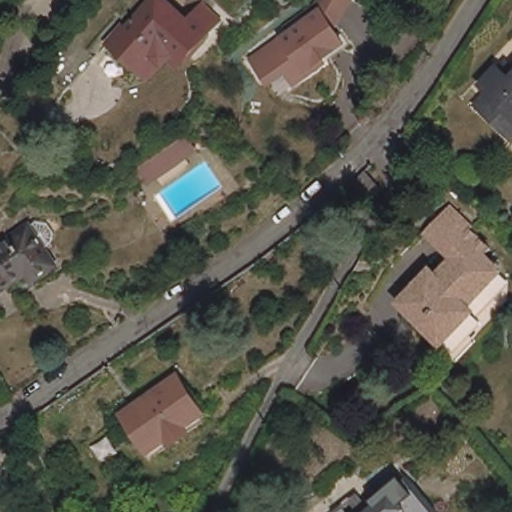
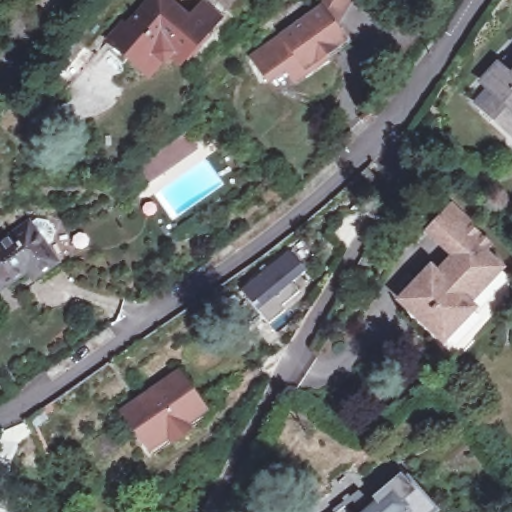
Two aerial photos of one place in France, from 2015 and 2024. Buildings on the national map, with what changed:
unchanged [(145,66),(127,49),(122,56),(108,44),(114,38),(112,36),(127,19),(132,22),(151,0),(177,0),(192,14),(204,0),(215,0),(226,9),(209,28),(184,57),(175,50),(167,59),(154,74),(145,66)]
unchanged [(295,88),(285,74),(267,86),(247,58),(278,36),(275,31),(315,4),(317,0),(351,0),(336,30),(347,44),(325,59),(327,64),(295,88)]
unchanged [(378,52),(403,17),(427,30),(431,32),(405,70),(378,52)]
unchanged [(72,35),(95,57),(69,87),(45,65),(72,35)]
unchanged [(511,125),(481,96),(494,83),(487,75),(508,54),(512,57),(512,124),(511,125)]
unchanged [(187,129),(200,146),(151,180),(140,163),(187,129)]
unchanged [(365,170),(379,184),(358,202),(345,187),(365,170)]
unchanged [(468,308),(473,314),(445,344),(403,304),(433,273),(438,279),(457,260),(431,235),(452,213),(495,253),(487,261),(500,275),(468,308)]
unchanged [(1,288),(0,287),(0,245),(32,222),(58,260),(36,276),(30,268),(1,288)]
new [(240,290),(288,250),(306,272),(292,285),(298,292),(282,306),(285,310),(268,325),(240,290)]
unchanged [(175,443),(171,438),(152,450),(126,412),(182,372),(208,411),(191,424),(195,429),(175,443)]
unchanged [(362,512),(411,471),(425,487),(428,491),(443,509),(439,512),(362,512)]
unchanged [(355,512),(335,512),(347,502),(355,512)]

